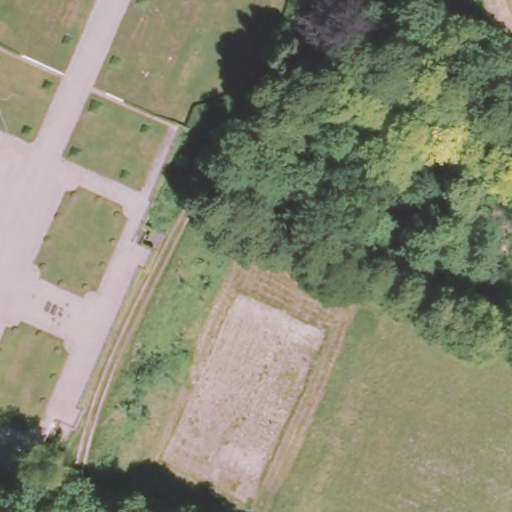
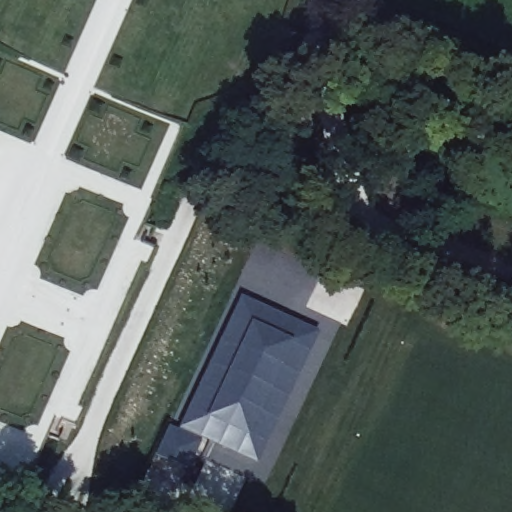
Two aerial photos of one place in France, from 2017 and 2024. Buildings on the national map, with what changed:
new [(256,465),(201,439),(187,470),(155,455),(170,425),(178,429),(240,295),(318,332),(256,465)]

